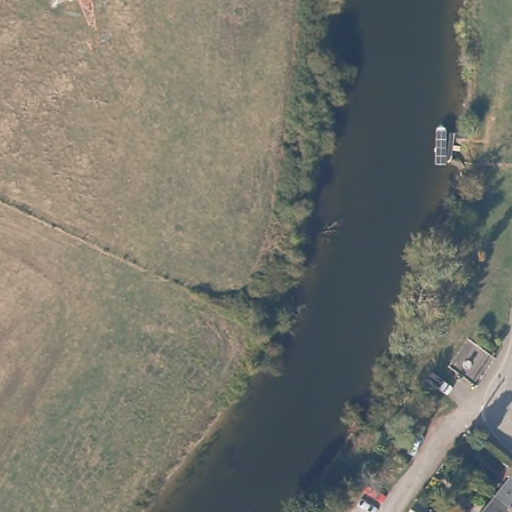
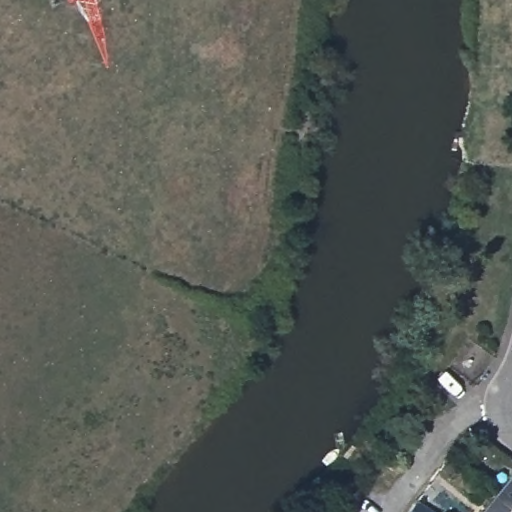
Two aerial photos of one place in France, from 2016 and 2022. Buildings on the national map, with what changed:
unchanged [(492,498),(512,473),(512,512),(511,512),(492,498)]
unchanged [(511,512),(482,512),(492,498),(511,512)]
unchanged [(430,512),(412,512),(417,504),(430,512)]

